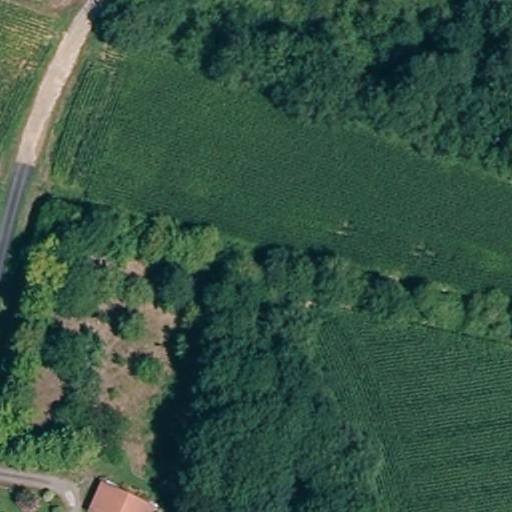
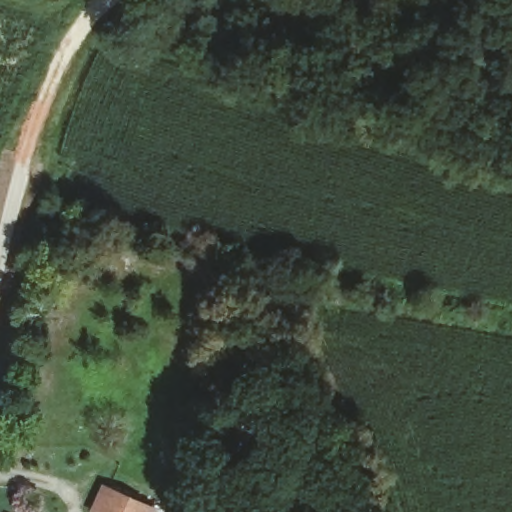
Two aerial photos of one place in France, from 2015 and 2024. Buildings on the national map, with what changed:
unchanged [(110,487),(154,512),(153,512),(101,512),(98,511),(105,496),(110,487)]

